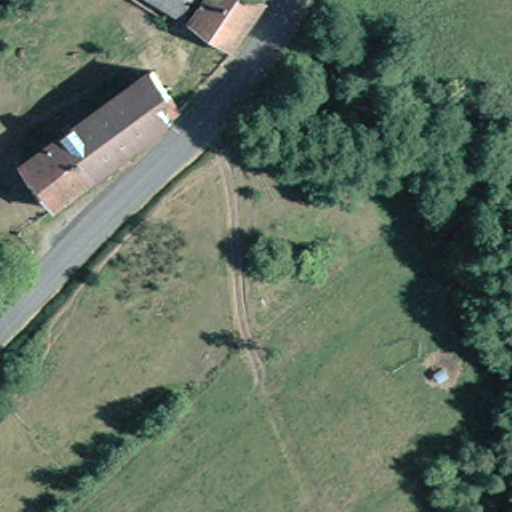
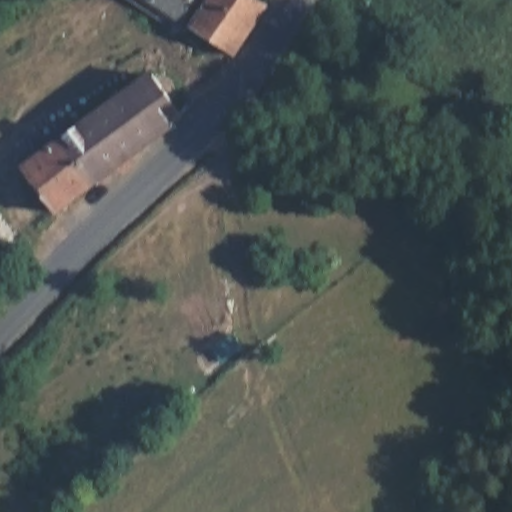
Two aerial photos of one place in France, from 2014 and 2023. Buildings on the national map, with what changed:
unchanged [(264,29),(259,35),(239,60),(194,27),(186,37),(138,0),(258,0),(275,13),(264,29)]
unchanged [(171,128),(151,143),(91,187),(54,214),(23,170),(150,76),(179,116),(173,123),(171,128)]

